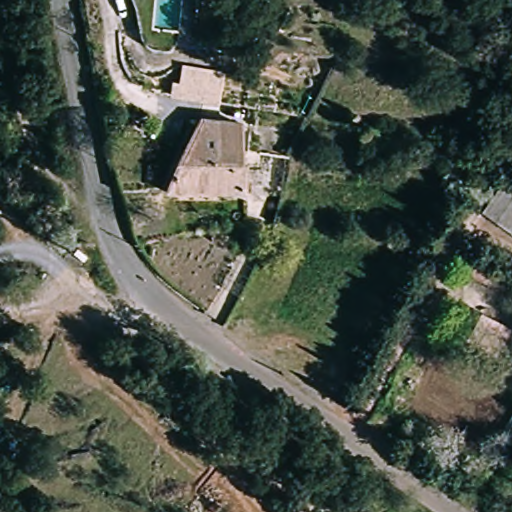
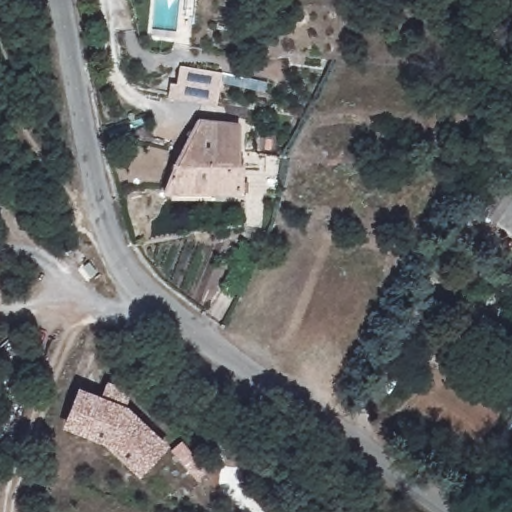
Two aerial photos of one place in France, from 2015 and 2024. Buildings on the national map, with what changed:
unchanged [(225,70),(218,105),(171,98),(173,84),(179,84),(183,65),(225,70)]
unchanged [(220,195),(169,197),(169,178),(197,126),(238,121),(243,166),(245,194),(220,195)]
unchanged [(512,178),(512,233),(485,217),(510,177),(512,178)]
new [(493,322),(512,334),(512,355),(505,367),(479,349),(493,322)]
new [(104,443),(64,428),(79,389),(129,408),(169,446),(140,476),(104,443)]

